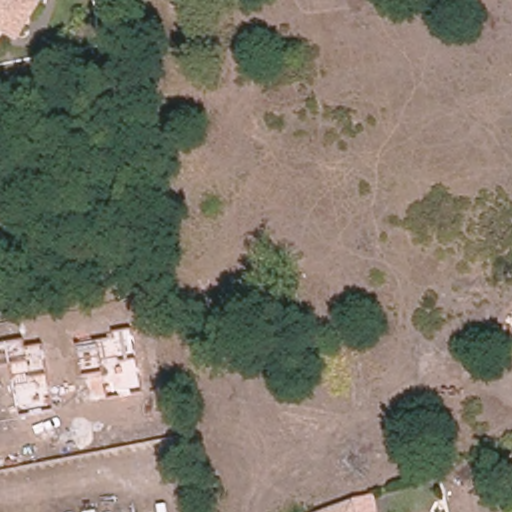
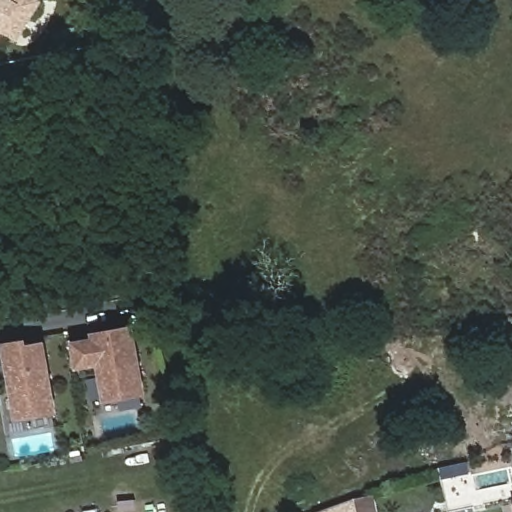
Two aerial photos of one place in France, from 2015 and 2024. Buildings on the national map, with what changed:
unchanged [(17,34),(0,24),(0,0),(36,0),(37,0),(17,34)]
new [(104,402),(98,365),(77,369),(72,340),(93,337),(92,331),(136,324),(148,394),(104,402)]
new [(3,342),(28,338),(29,343),(48,340),(61,413),(16,419),(3,342)]
unchanged [(369,512),(353,512),(351,500),(367,498),(369,512)]
unchanged [(348,499),(351,512),(316,512),(315,512),(348,499)]

